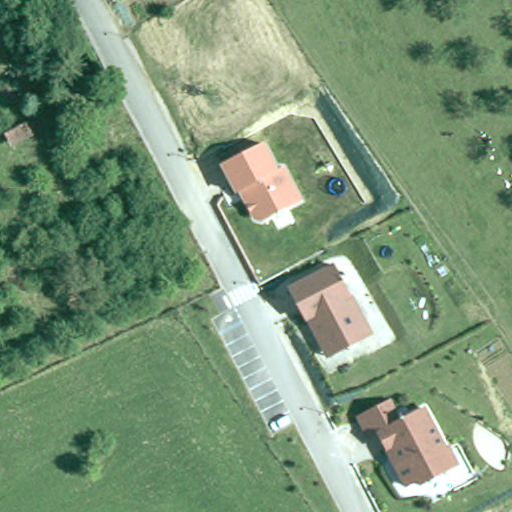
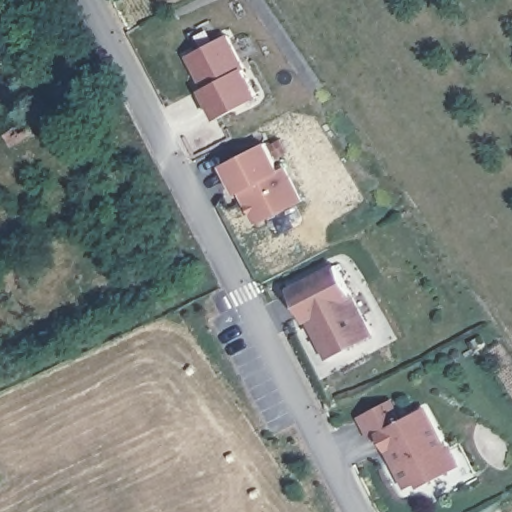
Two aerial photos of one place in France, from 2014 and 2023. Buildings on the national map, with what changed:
new [(246,63),(243,66),(259,95),(214,118),(199,89),(203,87),(186,54),(228,32),(246,63)]
unchanged [(261,221),(257,217),(253,219),(240,190),(236,193),(221,166),(265,143),(279,170),(285,166),(301,200),(261,221)]
unchanged [(324,347),(314,330),(309,318),(306,320),(291,290),(334,266),(371,336),(347,348),(329,357),(324,347)]
unchanged [(384,429),(375,433),(364,413),(395,397),(400,406),(409,400),(416,411),(429,404),(452,446),(461,462),(454,466),(427,480),(424,476),(413,482),(402,462),(396,451),(384,429)]

